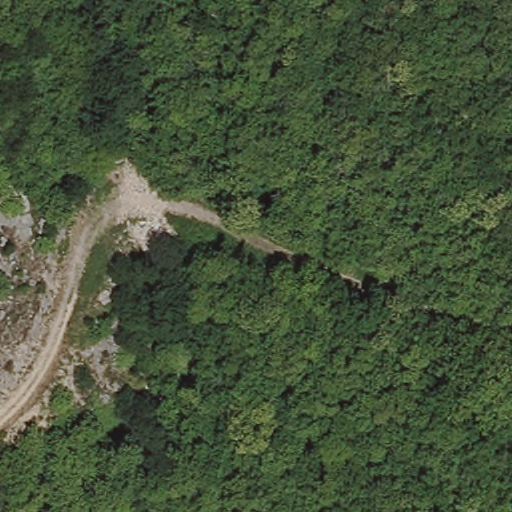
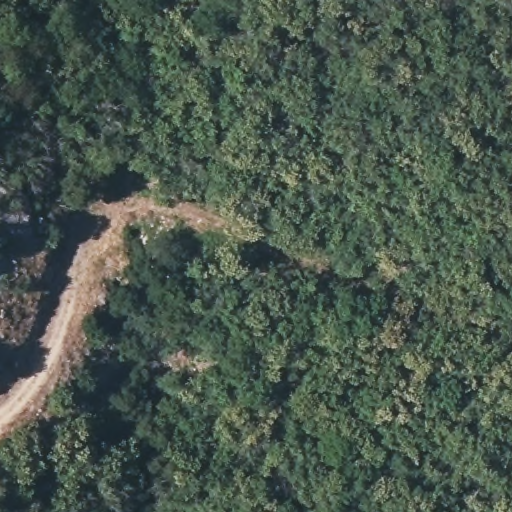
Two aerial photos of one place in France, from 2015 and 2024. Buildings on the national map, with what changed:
unchanged [(353,145),(374,129),(390,152),(368,167),(353,145)]

